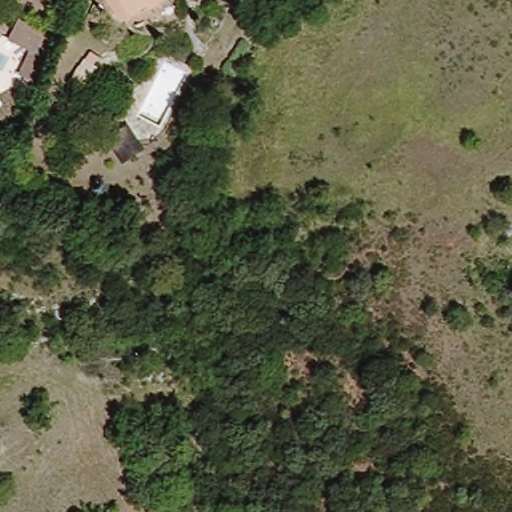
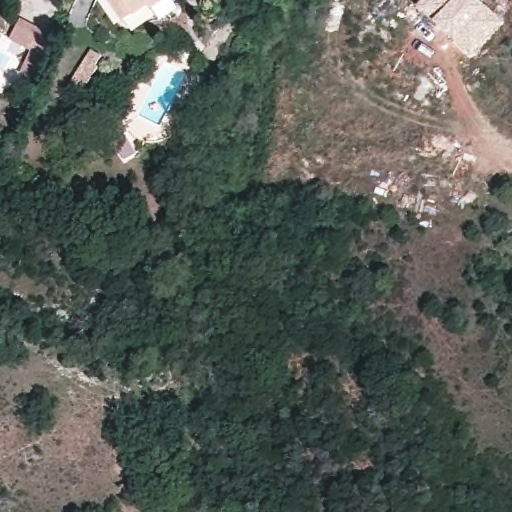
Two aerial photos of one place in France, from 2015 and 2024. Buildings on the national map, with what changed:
unchanged [(127,33),(102,0),(173,0),(127,33)]
new [(421,0),(480,0),(502,21),(469,57),(415,6),(421,0)]
unchanged [(102,62),(82,98),(67,88),(86,56),(102,62)]

